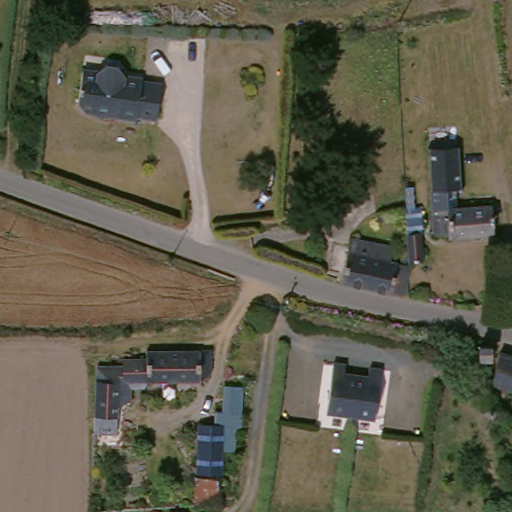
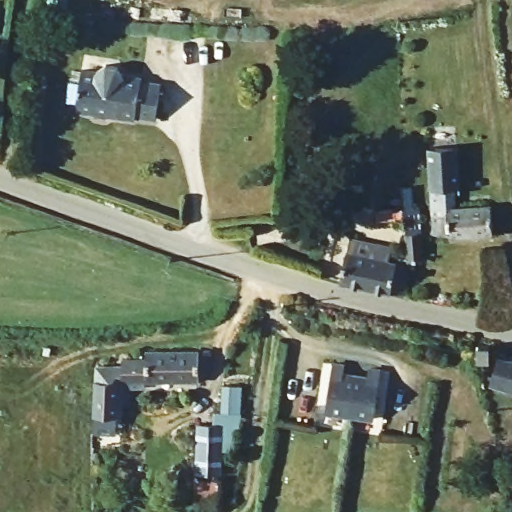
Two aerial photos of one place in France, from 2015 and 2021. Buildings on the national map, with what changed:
unchanged [(109,63),(120,66),(127,77),(143,79),(142,84),(163,87),(157,120),(136,117),(135,120),(111,116),(104,118),(93,116),(91,111),(82,110),(77,102),(87,68),(97,70),(109,63)]
unchanged [(459,149),(464,195),(459,196),(460,206),(460,212),(494,208),(497,236),(454,242),(453,239),(439,241),(435,209),(429,153),(459,149)]
unchanged [(414,205),(420,205),(425,258),(411,260),(406,206),(408,206),(414,205)]
unchanged [(402,206),(403,217),(380,220),(378,209),(402,206)]
unchanged [(347,250),(348,251),(352,236),(392,249),(390,258),(400,261),(401,257),(411,260),(403,297),(338,281),(347,250)]
unchanged [(185,348),(203,347),(204,369),(193,370),(193,379),(142,383),(138,389),(127,392),(128,402),(115,405),(117,418),(95,422),(92,373),(118,370),(117,360),(141,358),(140,352),(185,348)]
unchanged [(507,351),(512,353),(512,385),(496,380),(507,351)]
unchanged [(332,366),(343,368),(342,376),(365,379),(367,372),(380,373),(372,420),(323,413),(332,366)]
unchanged [(245,413),(237,413),(235,450),(225,450),(221,504),(192,504),(195,427),(214,427),(216,408),(226,408),(227,385),(246,385),(245,413)]

